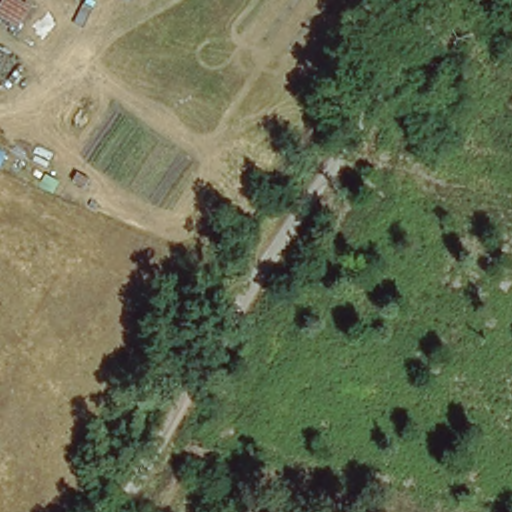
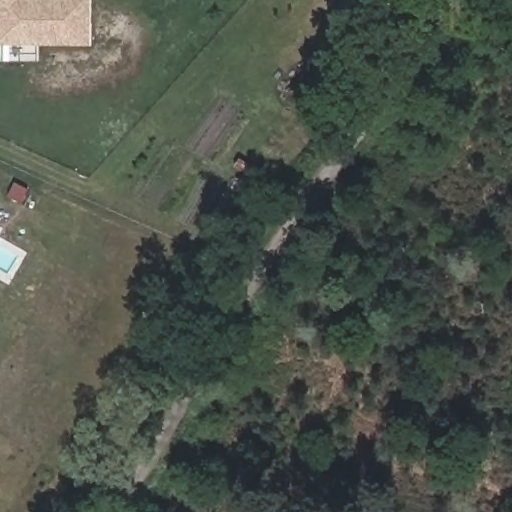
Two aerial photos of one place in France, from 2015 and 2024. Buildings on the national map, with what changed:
new [(36,45),(36,61),(2,61),(2,44),(0,44),(0,0),(89,0),(89,45),(36,45)]

